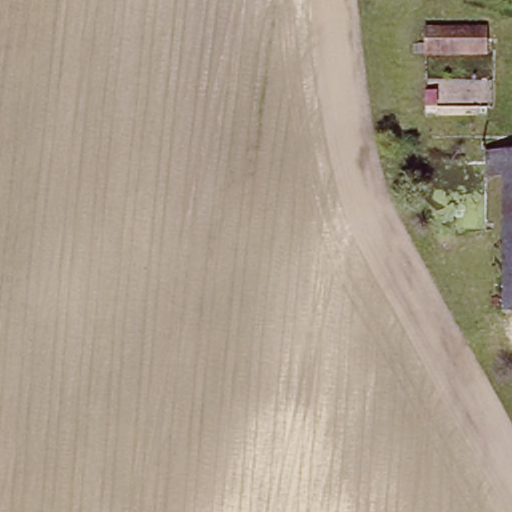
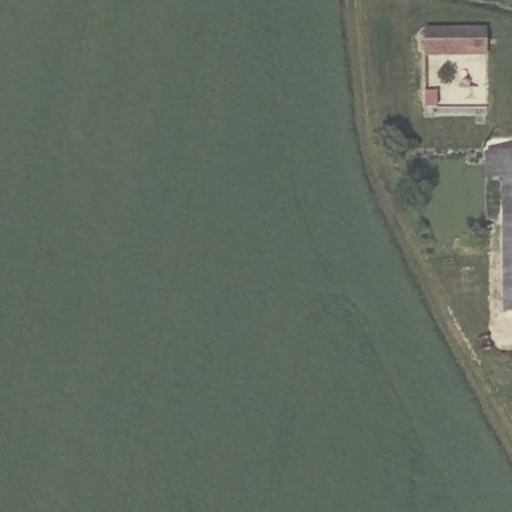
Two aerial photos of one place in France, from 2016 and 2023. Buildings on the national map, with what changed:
unchanged [(427,33),(485,32),(485,50),(428,51),(427,33)]
unchanged [(510,41),(512,41),(512,51),(510,51),(510,41)]
unchanged [(499,233),(498,175),(481,175),(482,159),(482,154),(512,155),(512,311),(499,311),(499,233)]

